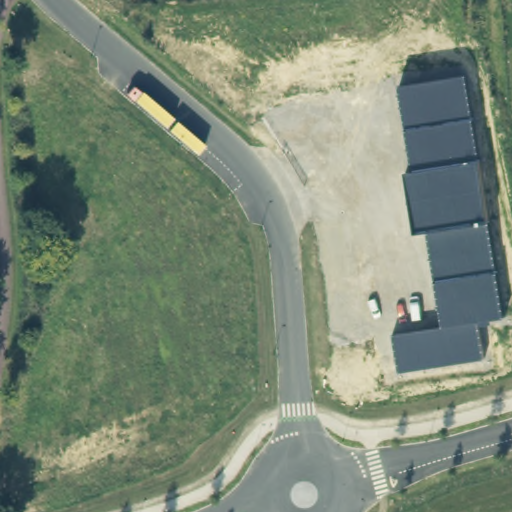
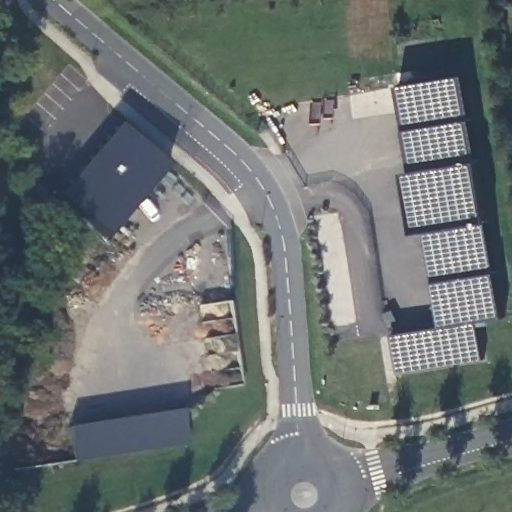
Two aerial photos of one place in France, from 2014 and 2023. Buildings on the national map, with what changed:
unchanged [(467,77),(478,163),(488,222),(503,320),(478,323),(484,360),(397,372),(392,336),(442,328),(425,233),(415,234),(407,174),(412,173),(399,88),(467,77)]
new [(168,165),(106,238),(55,196),(117,124),(168,165)]
new [(186,445),(74,462),(69,428),(181,411),(186,445)]

